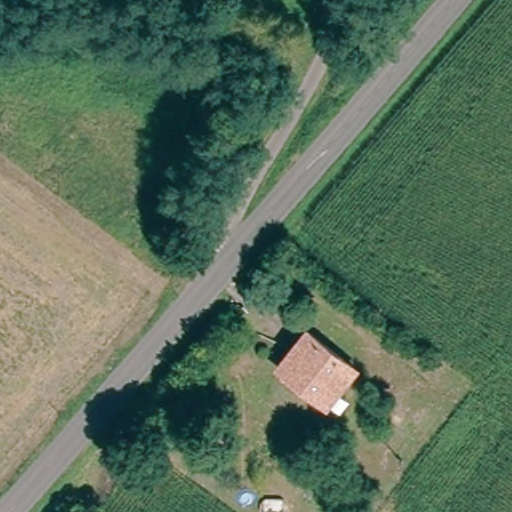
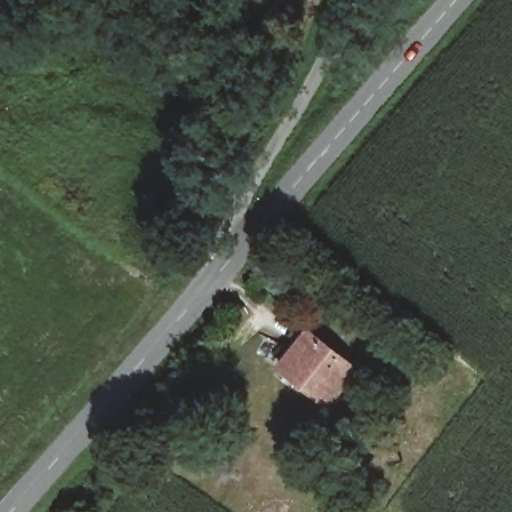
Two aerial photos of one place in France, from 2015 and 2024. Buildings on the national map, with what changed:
unchanged [(356,371),(325,407),(287,373),(277,363),(292,347),(309,329),(356,371)]

